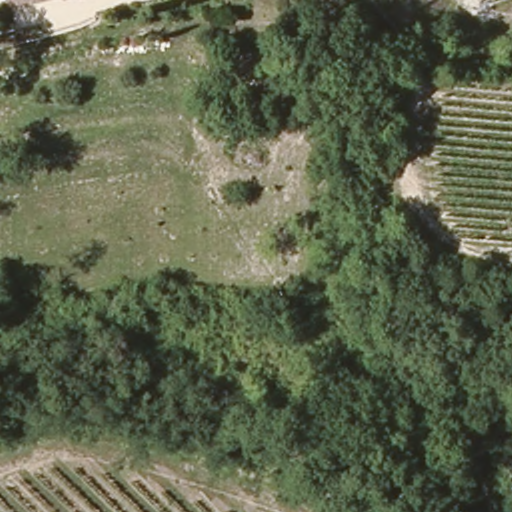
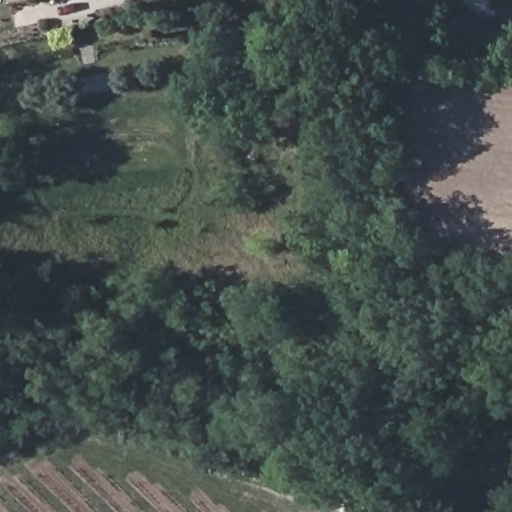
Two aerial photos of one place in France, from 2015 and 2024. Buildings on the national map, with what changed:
unchanged [(32,0),(11,6),(9,0),(32,0)]

